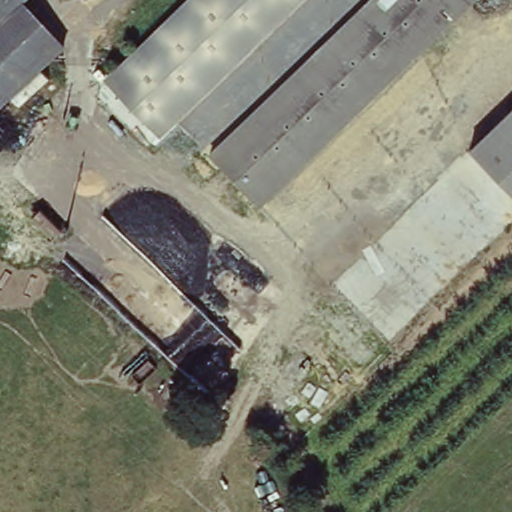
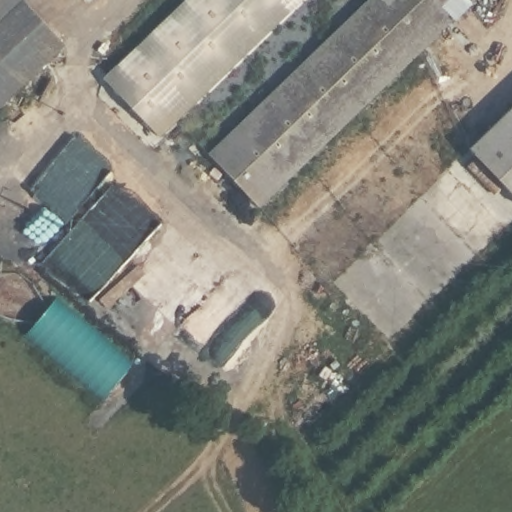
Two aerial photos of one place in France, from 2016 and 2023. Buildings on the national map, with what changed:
unchanged [(19,8),(56,55),(0,104),(0,0),(27,0),(19,8)]
unchanged [(181,0),(299,0),(151,131),(100,72),(181,0)]
unchanged [(244,206),(198,154),(370,0),(476,0),(244,206)]
unchanged [(512,102),(512,197),(465,143),(512,102)]
new [(133,363),(99,403),(21,338),(56,299),(133,363)]

